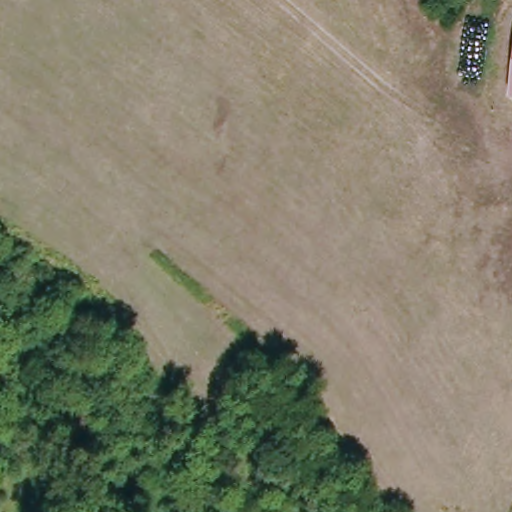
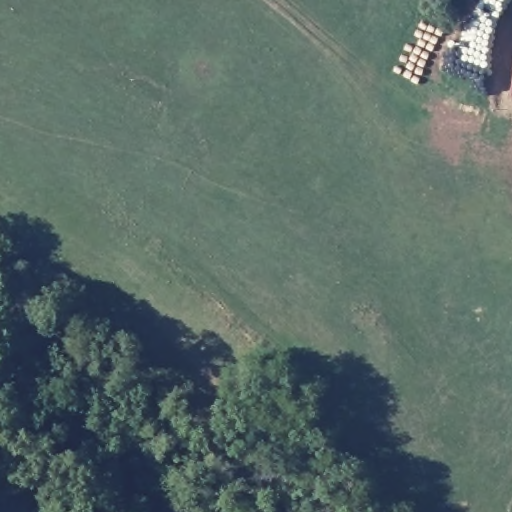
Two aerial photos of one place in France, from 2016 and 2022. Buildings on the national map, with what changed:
unchanged [(511,102),(512,94),(512,102),(511,102)]

